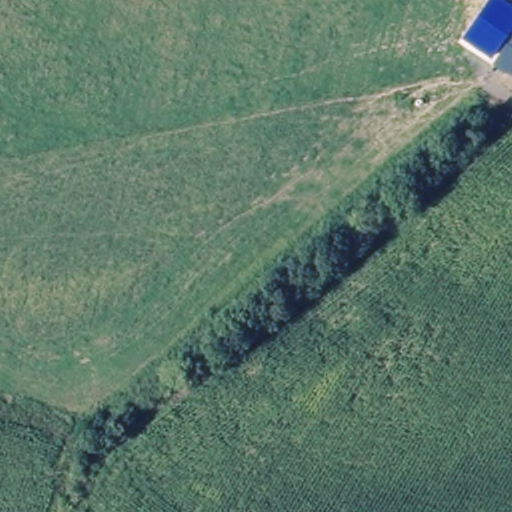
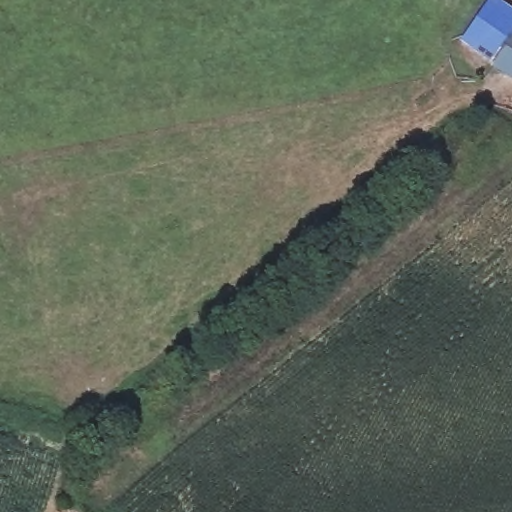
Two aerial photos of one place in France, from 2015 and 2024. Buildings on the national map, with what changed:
unchanged [(460,41),(488,0),(497,0),(512,10),(512,27),(490,61),(460,41)]
unchanged [(512,37),(512,79),(492,67),(512,37)]

